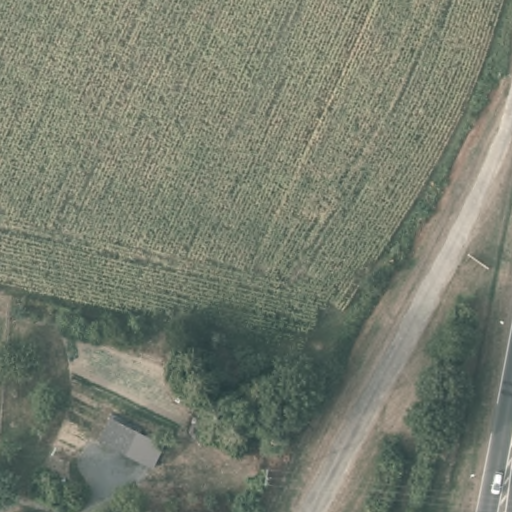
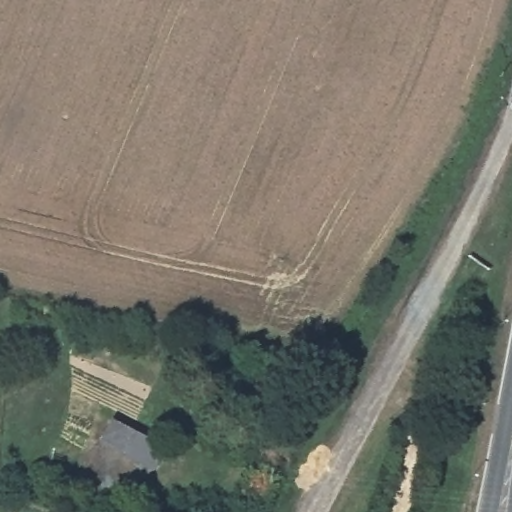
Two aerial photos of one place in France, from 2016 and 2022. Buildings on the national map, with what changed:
unchanged [(111,419),(145,433),(139,448),(129,444),(124,454),(114,449),(100,444),(111,419)]

